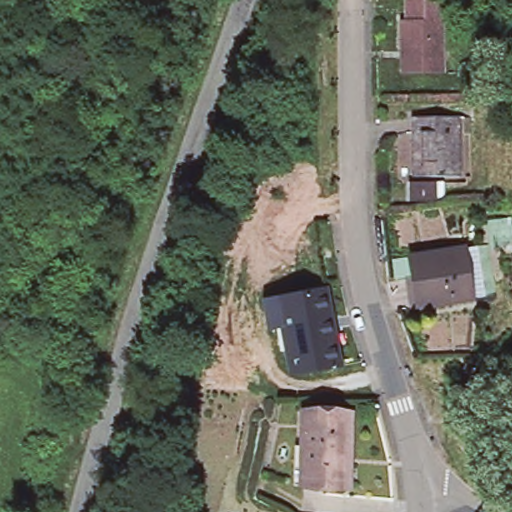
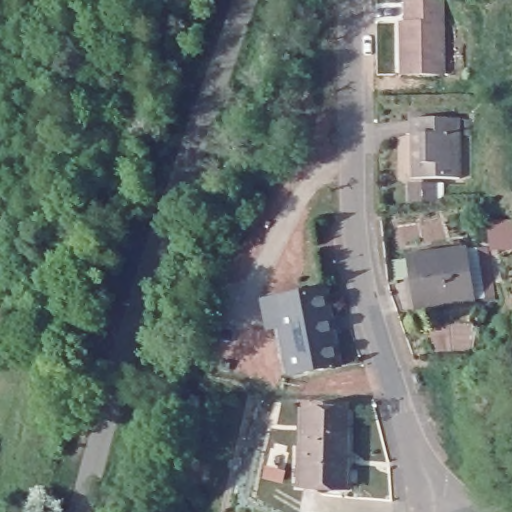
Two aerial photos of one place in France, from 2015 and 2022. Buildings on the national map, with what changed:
unchanged [(408,0),(442,0),(442,20),(445,74),(401,75),(398,22),(408,21),(408,0)]
unchanged [(410,135),(410,119),(457,118),(457,181),(409,180),(409,163),(414,163),(413,135),(410,135)]
unchanged [(433,187),(432,205),(410,204),(410,187),(433,187)]
unchanged [(512,247),(490,249),(490,223),(512,224),(512,247)]
unchanged [(471,251),(479,302),(427,310),(423,288),(428,287),(423,258),(471,251)]
unchanged [(279,337),(264,340),(263,336),(259,313),(269,311),(274,310),(323,302),(337,377),(288,386),(279,337)]
unchanged [(347,411),(349,486),(302,486),(300,412),(347,411)]

